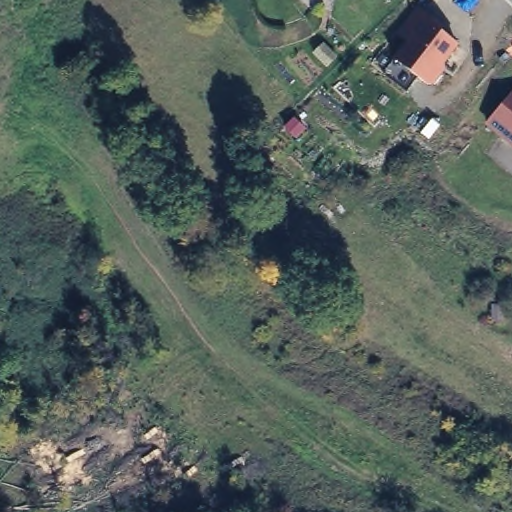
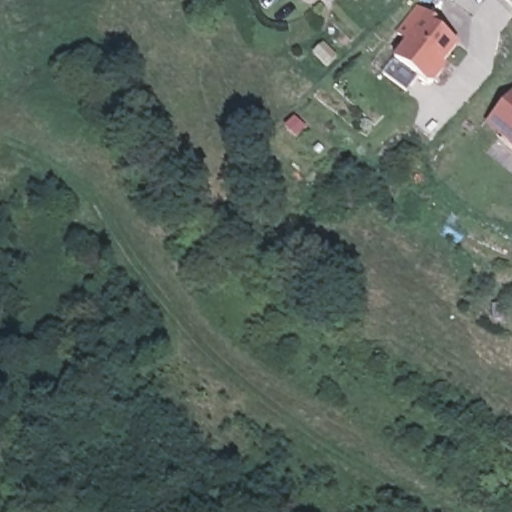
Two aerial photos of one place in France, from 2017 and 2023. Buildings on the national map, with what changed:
unchanged [(442,65),(446,67),(433,88),(391,60),(405,39),(398,35),(420,9),(447,30),(443,34),(458,45),(442,65)]
unchanged [(512,96),(512,140),(490,121),(512,96)]

